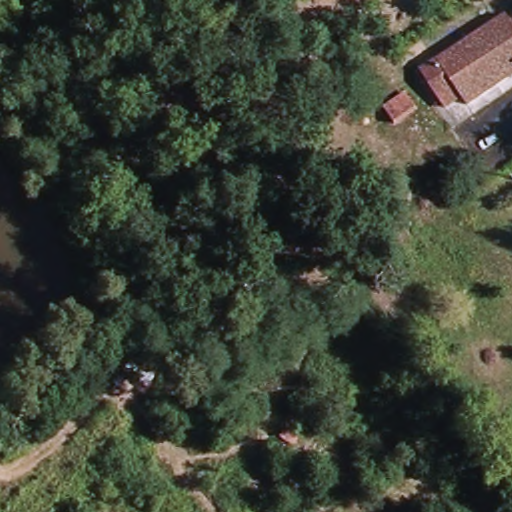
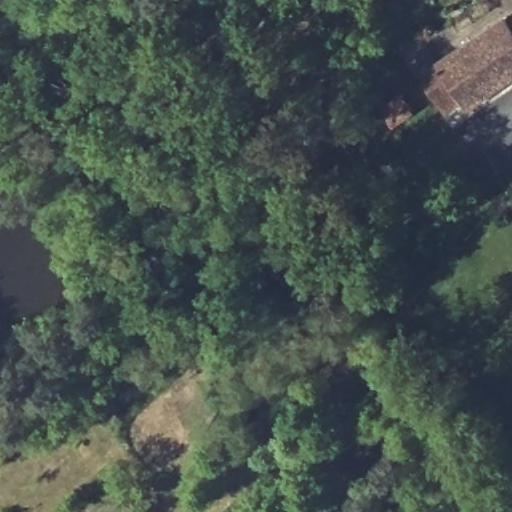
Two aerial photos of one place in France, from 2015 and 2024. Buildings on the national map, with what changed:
unchanged [(441,95),(426,71),(506,19),(508,21),(512,18),(512,78),(468,107),(463,100),(448,109),(441,95)]

